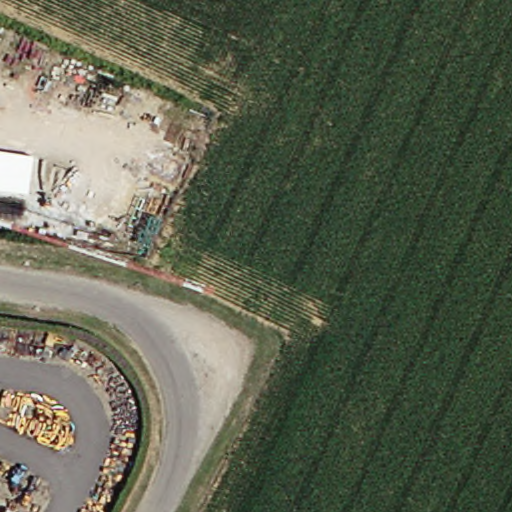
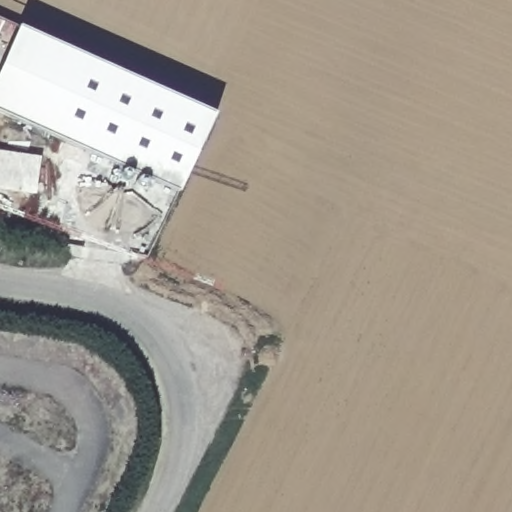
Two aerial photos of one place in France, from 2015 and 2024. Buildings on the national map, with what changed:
new [(180,192),(0,112),(0,72),(20,27),(216,115),(180,192)]
new [(45,196),(0,190),(0,152),(50,158),(45,196)]

